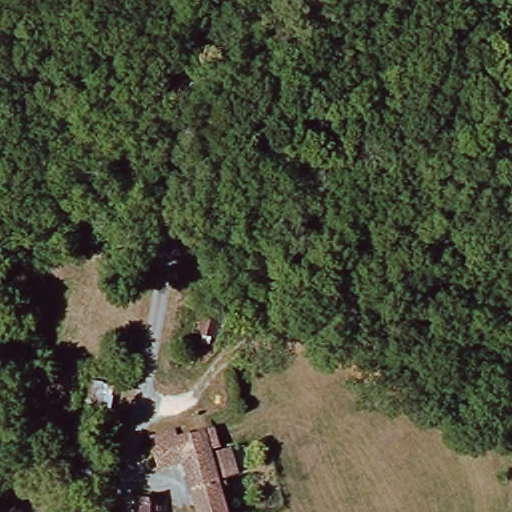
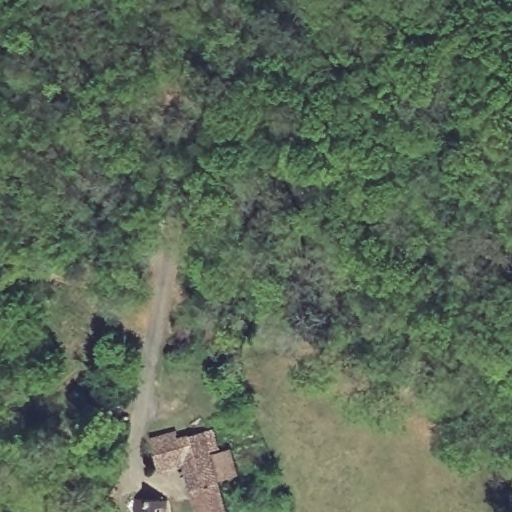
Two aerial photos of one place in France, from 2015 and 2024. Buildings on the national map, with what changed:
unchanged [(199,488),(191,465),(165,472),(157,436),(182,429),(184,435),(218,425),(227,454),(231,453),(239,451),(247,477),(224,483),(232,512),(206,512),(199,488)]
unchanged [(136,501),(172,502),(172,512),(136,512),(136,501)]

